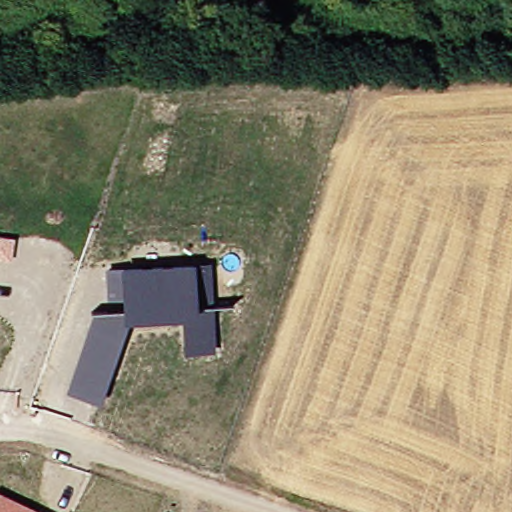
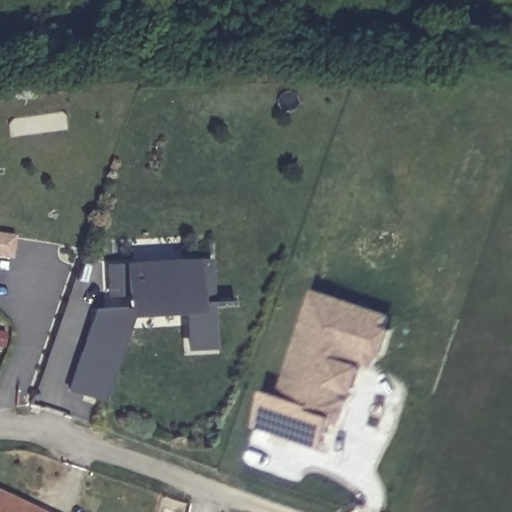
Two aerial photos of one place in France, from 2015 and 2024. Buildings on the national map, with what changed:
unchanged [(18,233),(14,258),(0,257),(0,231),(18,233)]
unchanged [(93,302),(122,309),(119,264),(208,254),(216,351),(186,354),(184,321),(127,325),(105,403),(67,391),(93,302)]
new [(348,402),(340,423),(333,422),(324,448),(257,426),(267,395),(281,399),(317,292),(389,317),(385,330),(390,331),(383,356),(376,354),(374,364),(354,358),(351,367),(360,370),(353,392),(343,389),(340,399),(348,402)]
unchanged [(0,512),(0,490),(43,512),(0,512)]

